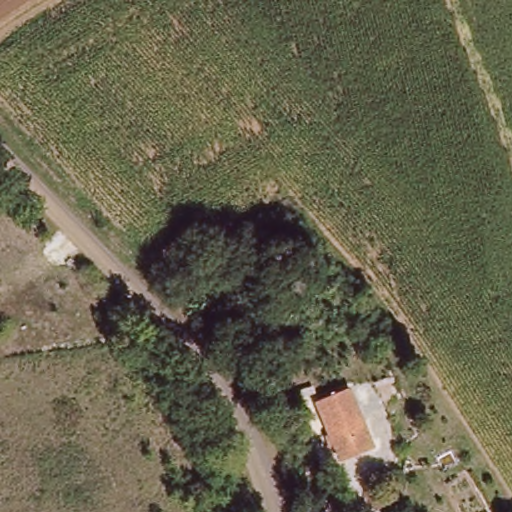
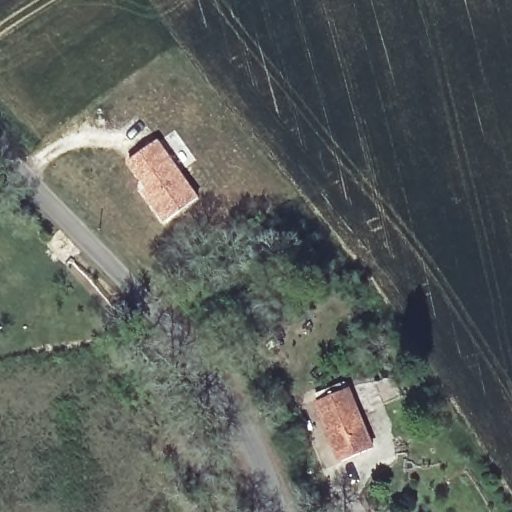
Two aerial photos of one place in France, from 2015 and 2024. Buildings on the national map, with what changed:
new [(158,139),(201,199),(164,225),(137,187),(139,185),(124,162),(158,139)]
unchanged [(372,448),(338,462),(313,404),(345,390),(372,448)]

